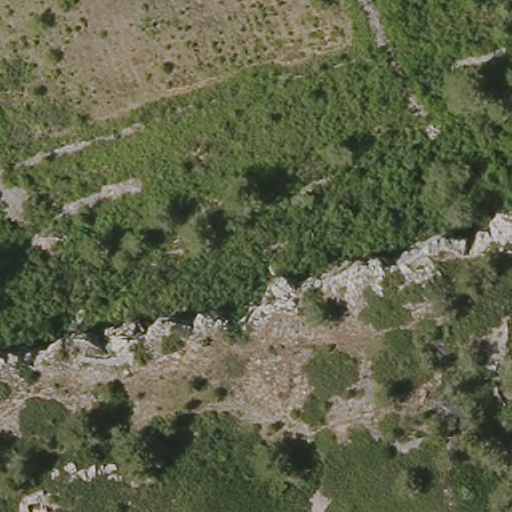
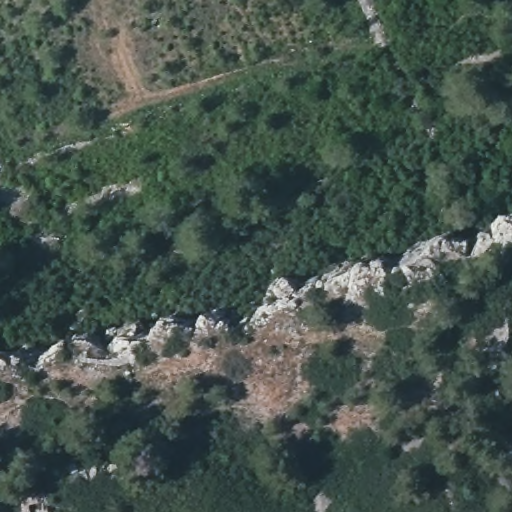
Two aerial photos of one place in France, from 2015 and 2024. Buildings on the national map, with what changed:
[]

